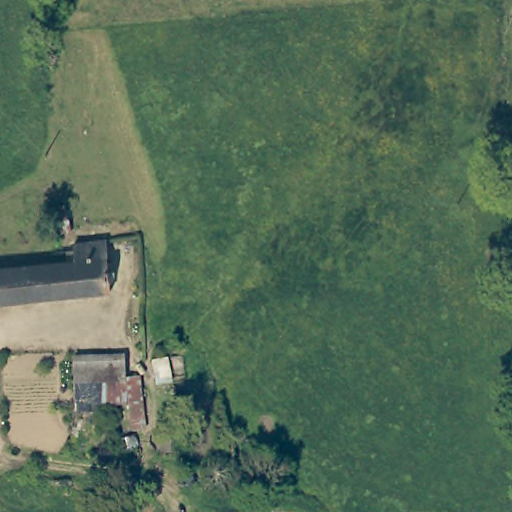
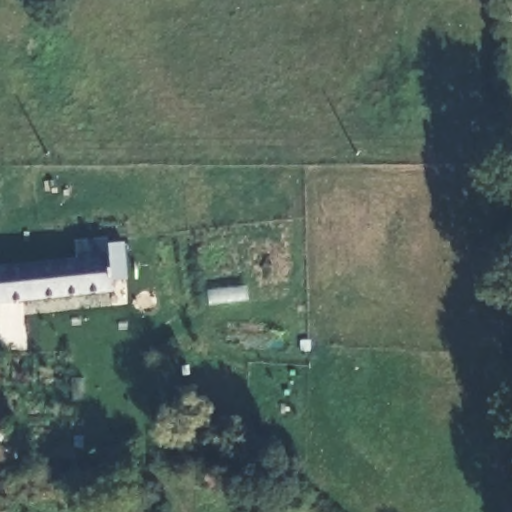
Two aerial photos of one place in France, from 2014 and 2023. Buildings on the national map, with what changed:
unchanged [(0,266),(46,261),(71,260),(73,260),(72,245),(105,242),(108,257),(103,258),(106,295),(0,303),(0,266)]
demolished [(75,355),(128,354),(128,376),(141,376),(146,430),(132,433),(129,412),(74,415),(75,355)]

